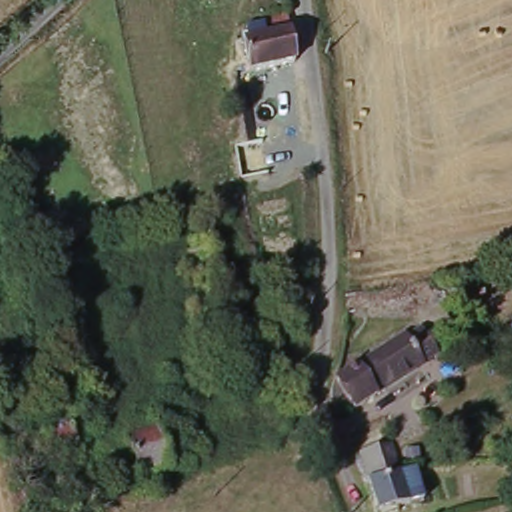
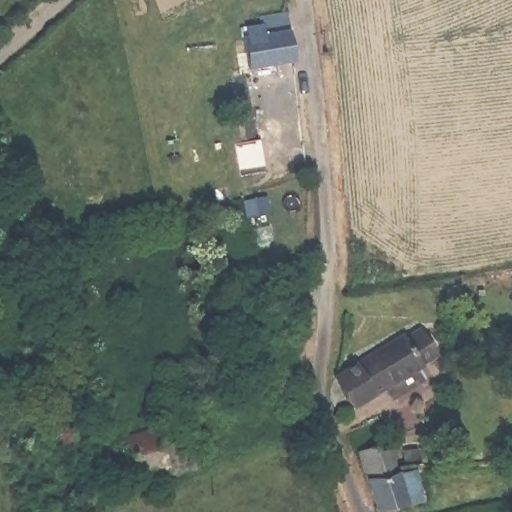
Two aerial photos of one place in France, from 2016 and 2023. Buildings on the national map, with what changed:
unchanged [(250,77),(245,45),(251,43),(249,35),(262,33),(261,26),(286,20),(293,68),(250,77)]
unchanged [(405,349),(407,352),(423,341),(436,366),(377,399),(378,404),(355,418),(336,389),(405,349)]
unchanged [(70,418),(78,443),(53,453),(45,427),(70,418)]
unchanged [(174,476),(137,488),(126,439),(158,434),(174,476)]
unchanged [(424,505),(396,512),(374,512),(359,459),(391,449),(400,481),(417,476),(424,505)]

